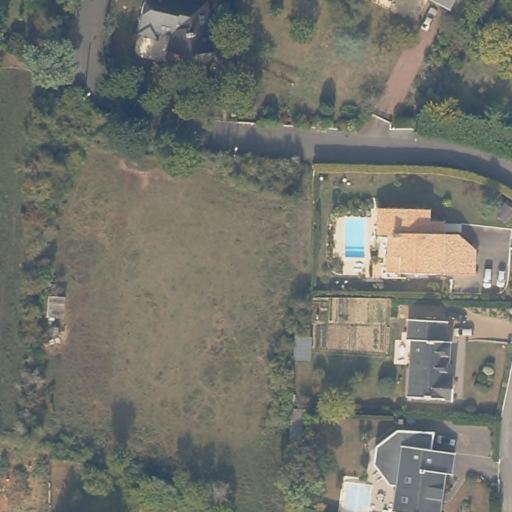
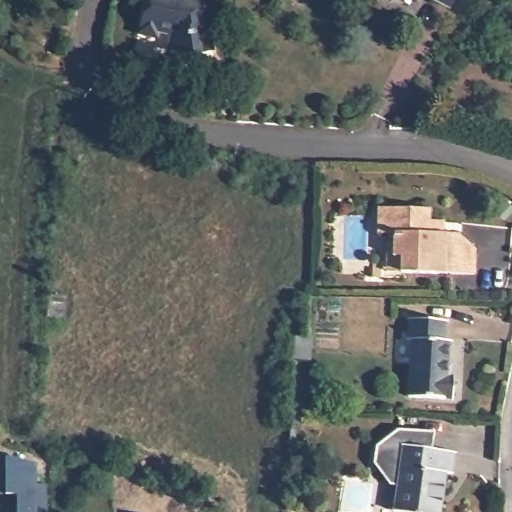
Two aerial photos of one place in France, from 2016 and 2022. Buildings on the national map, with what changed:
unchanged [(194,9),(203,7),(204,7),(204,8),(204,11),(204,12),(210,50),(190,54),(189,56),(164,50),(169,33),(156,30),(154,39),(145,36),(134,34),(138,14),(141,13),(143,4),(140,0),(187,0),(193,1),(194,9)]
unchanged [(394,0),(391,7),(374,0),(394,0)]
unchanged [(453,0),(448,11),(423,0),(453,0)]
unchanged [(489,0),(488,3),(482,0),(489,0)]
unchanged [(389,255),(391,255),(392,235),(392,230),(380,230),(381,205),(432,206),(432,218),(446,219),(446,231),(459,231),(479,246),(478,271),(403,269),(388,269),(389,255)]
unchanged [(441,320),(440,340),(446,340),(444,377),(449,378),(449,398),(404,396),(407,339),(404,338),(404,319),(441,320)]
unchanged [(291,360),(291,337),(305,337),(307,337),(307,360),(304,360),(291,360)]
unchanged [(299,407),(298,435),(288,435),(288,407),(299,407)]
unchanged [(430,460),(453,462),(450,485),(444,483),(441,512),(395,512),(397,498),(389,497),(372,476),(374,459),(395,440),(432,442),(430,460)]
new [(18,494),(7,495),(0,494),(0,457),(7,458),(35,465),(37,512),(18,512),(18,494)]

